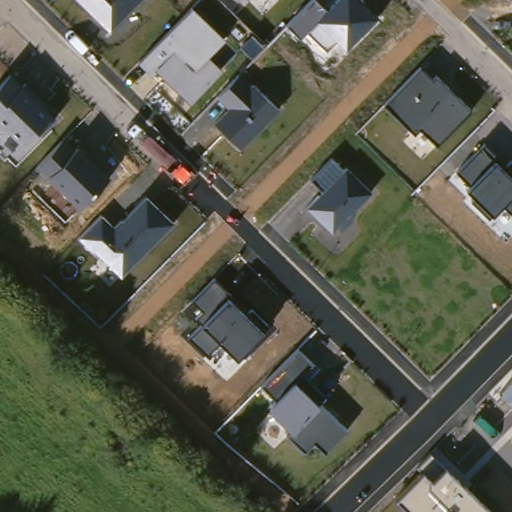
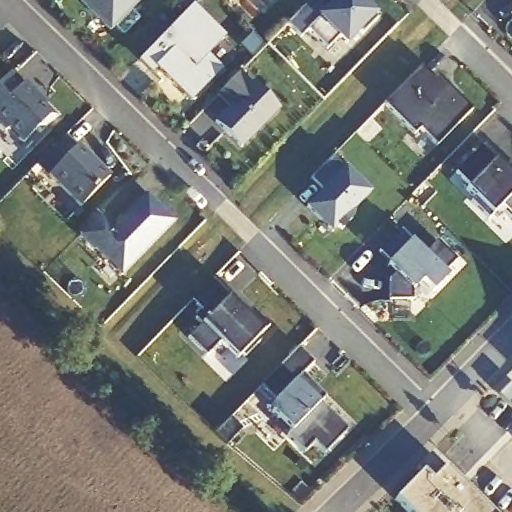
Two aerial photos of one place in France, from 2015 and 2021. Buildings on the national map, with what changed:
unchanged [(141,0),(110,31),(77,0),(141,0)]
unchanged [(219,34),(223,39),(207,58),(221,69),(189,103),(156,70),(151,75),(137,61),(192,6),(198,0),(218,0),(236,19),(219,34)]
unchanged [(317,0),(326,7),(333,0),(363,0),(360,3),(376,15),(344,49),(335,39),(325,50),(307,30),(298,38),(286,25),(311,0),(317,0)]
unchanged [(419,129),(413,135),(384,104),(420,68),(432,80),(435,76),(470,111),(436,145),(419,129)]
unchanged [(46,104),(43,106),(52,116),(22,146),(0,125),(0,83),(10,73),(23,84),(25,83),(46,104)]
unchanged [(278,109),(240,148),(212,121),(227,106),(218,95),(237,73),(251,85),(252,84),(278,109)]
unchanged [(49,174),(37,165),(61,139),(75,150),(77,148),(110,178),(80,209),(47,177),(49,174)]
unchanged [(492,214),(488,219),(471,201),(475,197),(466,189),(470,184),(456,172),(483,144),(505,167),(511,160),(512,161),(512,215),(503,204),(492,214)]
unchanged [(306,207),(322,190),(310,179),(330,159),(342,169),(345,168),(371,193),(332,232),(306,207)]
unchanged [(113,225),(119,219),(123,219),(145,196),(173,223),(120,277),(77,238),(100,214),(113,225)]
new [(422,250),(435,237),(454,257),(441,269),(445,273),(429,289),(418,277),(409,285),(410,296),(387,298),(386,274),(396,263),(387,258),(376,247),(398,225),(422,250)]
unchanged [(230,297),(228,299),(244,315),(250,309),(268,328),(261,333),(236,359),(217,341),(207,354),(190,336),(202,324),(196,317),(204,310),(194,300),(213,280),(230,297)]
unchanged [(261,385),(297,349),(313,365),(302,377),(326,399),(319,406),(346,431),(323,453),(312,443),(302,452),(288,437),(293,432),(270,407),(276,401),(261,385)]
unchanged [(395,499),(421,472),(417,467),(428,454),(443,468),(489,512),(408,512),(395,499)]

